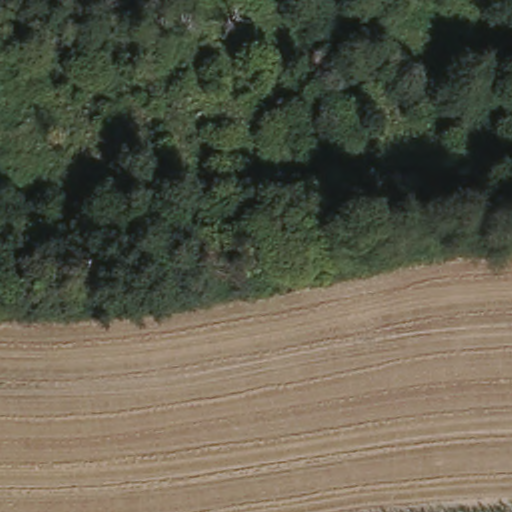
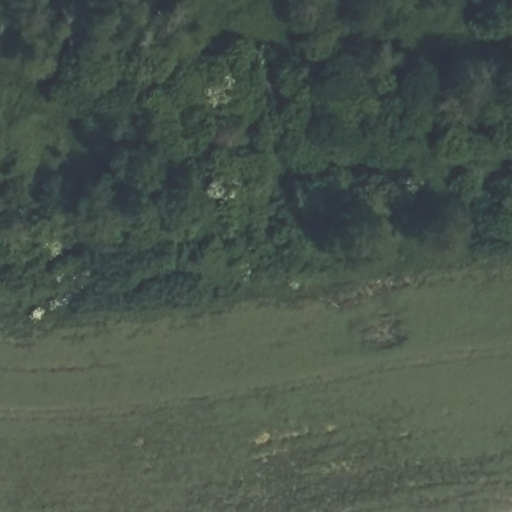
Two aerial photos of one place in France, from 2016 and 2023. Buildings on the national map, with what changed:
unchanged [(326,163),(326,182),(309,182),(309,163),(326,163)]

